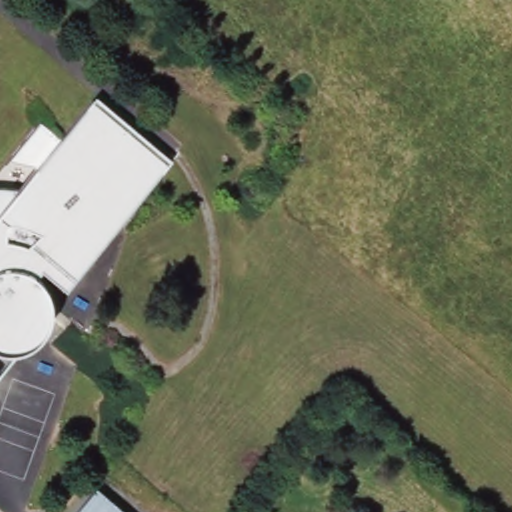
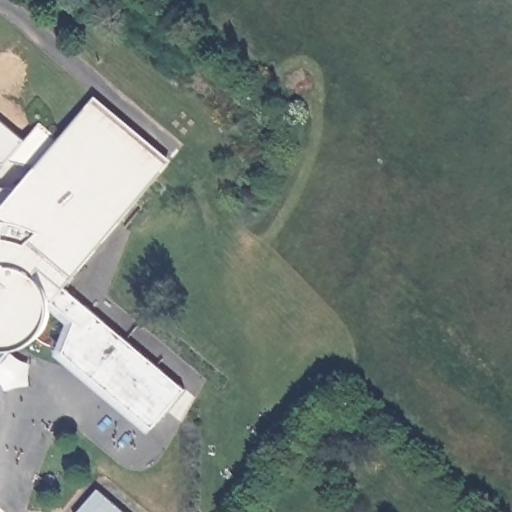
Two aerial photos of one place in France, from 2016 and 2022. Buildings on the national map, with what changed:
unchanged [(5,187),(14,188),(21,191),(43,165),(17,157),(47,122),(66,139),(99,101),(172,165),(119,226),(68,285),(46,266),(39,274),(46,280),(52,289),(56,302),(56,311),(52,322),(47,331),(39,338),(30,344),(16,348),(0,366),(0,186),(5,187)]
new [(184,389),(152,427),(64,354),(75,321),(56,302),(52,289),(46,280),(39,274),(46,266),(68,285),(184,389)]
new [(77,512),(98,489),(124,512),(77,512)]
demolished [(125,512),(92,512),(106,496),(125,512)]

